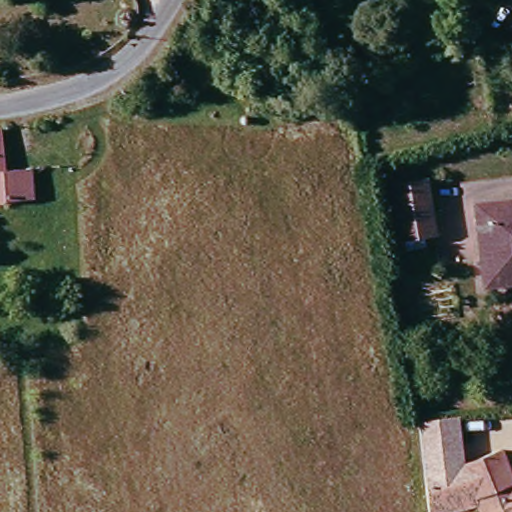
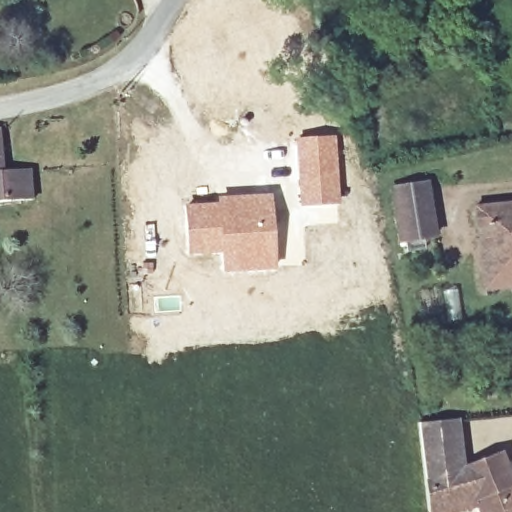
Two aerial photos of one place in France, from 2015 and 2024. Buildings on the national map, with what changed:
new [(335,135),(340,204),(298,206),(295,137),(335,135)]
unchanged [(0,201),(0,170),(27,167),(30,196),(0,201)]
unchanged [(399,239),(393,187),(427,183),(433,235),(399,239)]
new [(216,200),(216,195),(272,193),(276,269),(221,272),(220,253),(187,254),(184,203),(216,200)]
unchanged [(487,285),(482,204),(512,202),(512,284),(487,285)]
unchanged [(477,503),(437,512),(424,512),(415,419),(455,417),(463,470),(501,453),(512,478),(512,512),(482,512),(477,503)]

